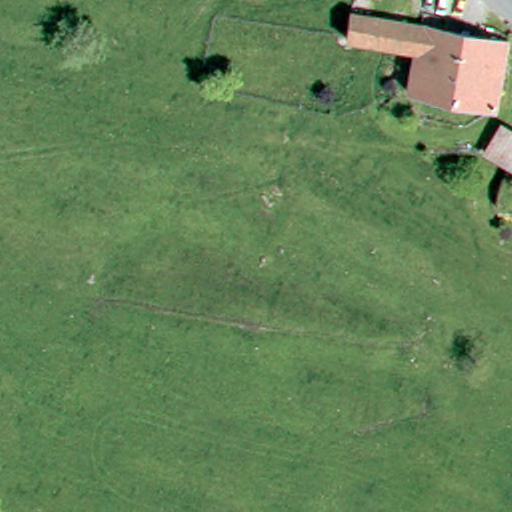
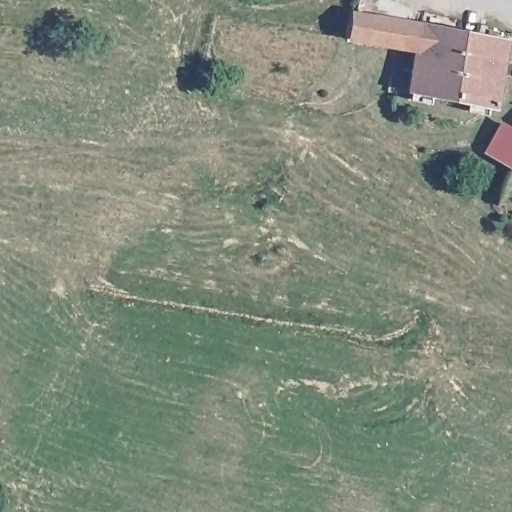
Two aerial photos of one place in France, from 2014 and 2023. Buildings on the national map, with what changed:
unchanged [(342,35),(347,7),(349,0),(367,0),(365,11),(454,29),(455,25),(482,25),(492,27),(504,31),(490,103),(404,86),(410,48),(342,35)]
unchanged [(425,120),(424,126),(414,123),(415,117),(425,120)]
unchanged [(510,165),(482,146),(497,119),(512,128),(512,162),(510,165)]
unchanged [(490,183),(499,187),(491,200),(483,196),(490,183)]

